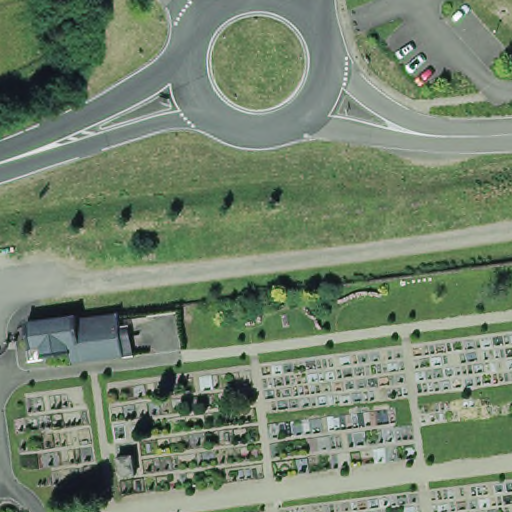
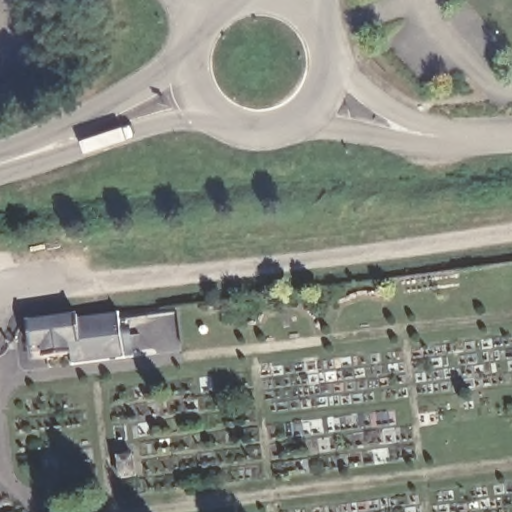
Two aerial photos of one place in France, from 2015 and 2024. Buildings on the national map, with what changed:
unchanged [(22,343),(19,324),(19,320),(19,319),(19,317),(34,315),(57,313),(61,312),(69,311),(69,314),(70,317),(69,317),(73,348),(61,349),(36,353),(24,354),(22,343)]
unchanged [(70,317),(110,312),(116,350),(62,357),(61,349),(73,348),(69,317),(70,317)]

